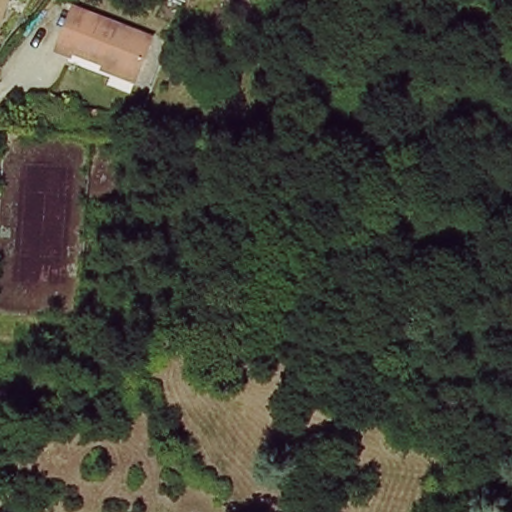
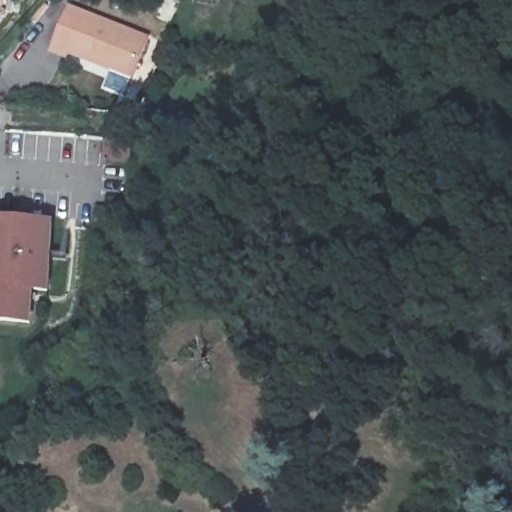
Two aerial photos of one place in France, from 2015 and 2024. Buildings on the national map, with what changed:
unchanged [(1,2),(0,5),(0,0),(3,0),(3,3),(1,2)]
unchanged [(74,8),(153,39),(138,78),(105,64),(74,53),(72,57),(57,51),(74,8)]
new [(133,148),(131,166),(107,164),(108,145),(133,148)]
new [(35,294),(32,325),(0,323),(0,215),(53,219),(48,294),(35,294)]

